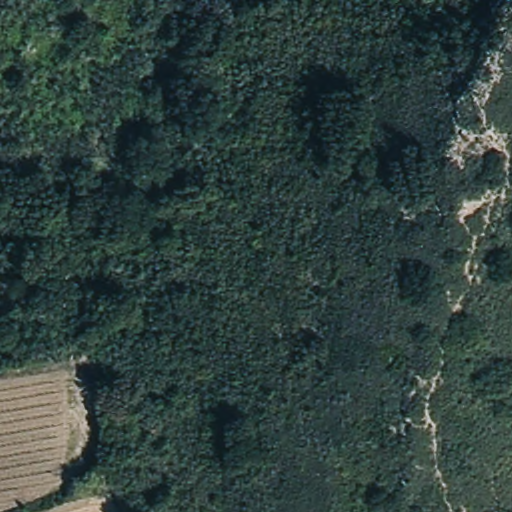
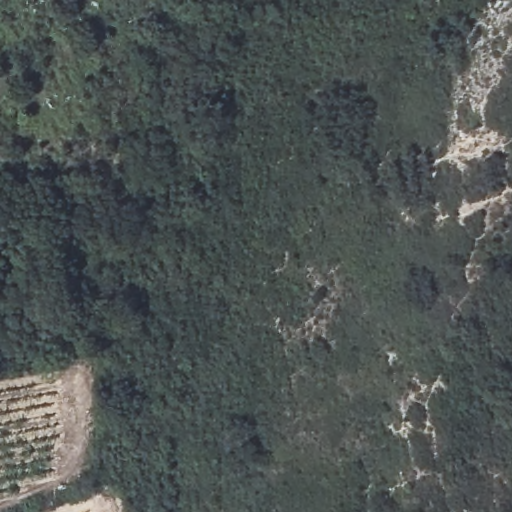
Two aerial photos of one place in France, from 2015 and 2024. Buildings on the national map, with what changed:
[]

